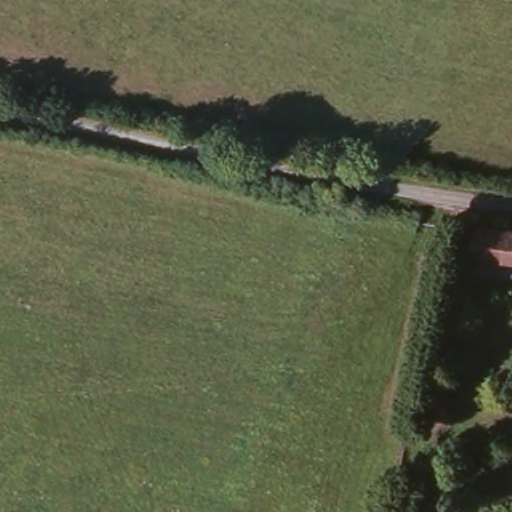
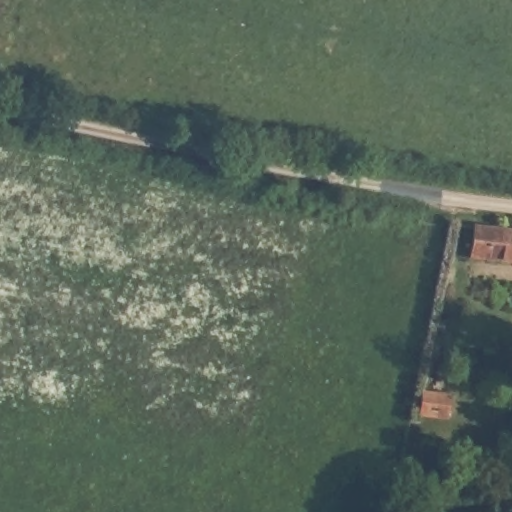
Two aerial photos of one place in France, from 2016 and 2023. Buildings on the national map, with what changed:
unchanged [(512,228),(512,258),(476,251),(482,221),(512,228)]
unchanged [(454,401),(449,423),(423,417),(428,394),(454,401)]

